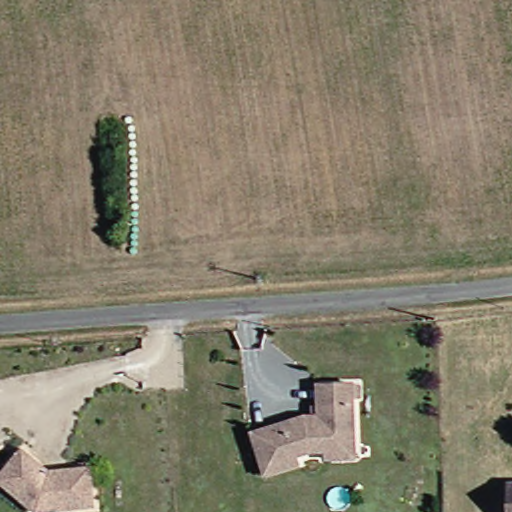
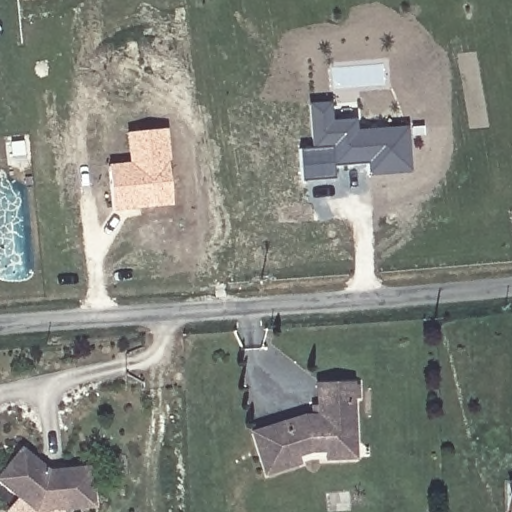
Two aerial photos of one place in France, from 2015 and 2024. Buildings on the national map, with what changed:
new [(332,121),(356,119),(357,130),(407,128),(411,174),(367,177),(367,163),(333,166),(333,178),(301,182),(298,149),(310,149),(307,105),(331,103),(332,121)]
new [(170,162),(167,162),(172,206),(113,213),(107,164),(127,163),(124,134),(165,130),(170,162)]
unchanged [(329,464),(328,452),(302,453),(302,465),(271,476),(256,431),(322,413),(321,386),(366,386),(365,406),(357,406),(358,447),(359,463),(329,464)]
unchanged [(52,469),(103,464),(107,505),(39,511),(1,479),(27,448),(52,469)]

